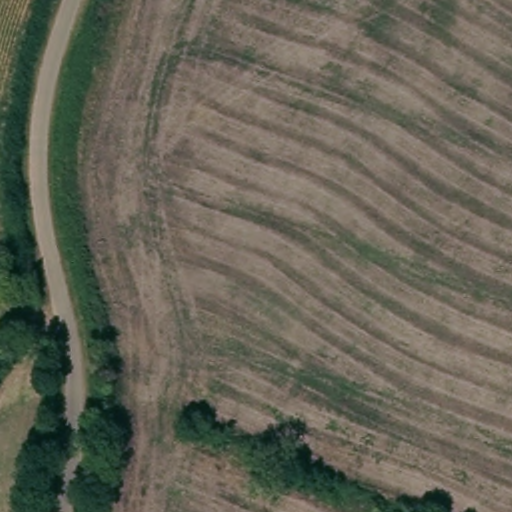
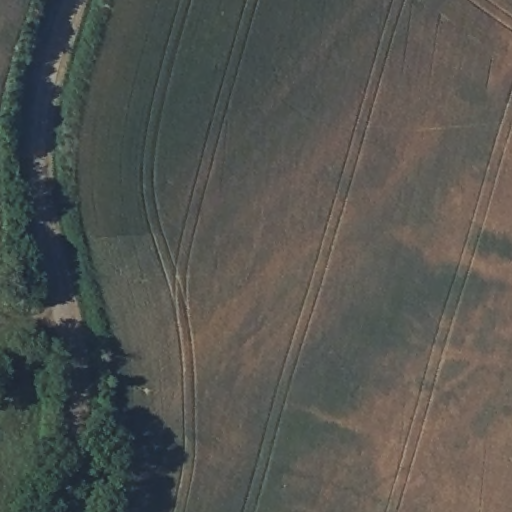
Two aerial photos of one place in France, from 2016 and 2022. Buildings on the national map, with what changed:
[]

